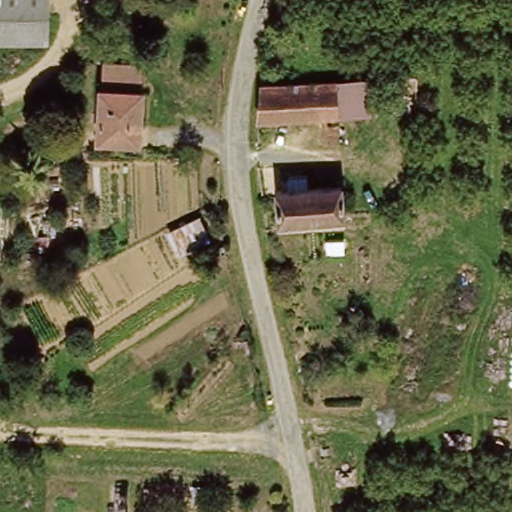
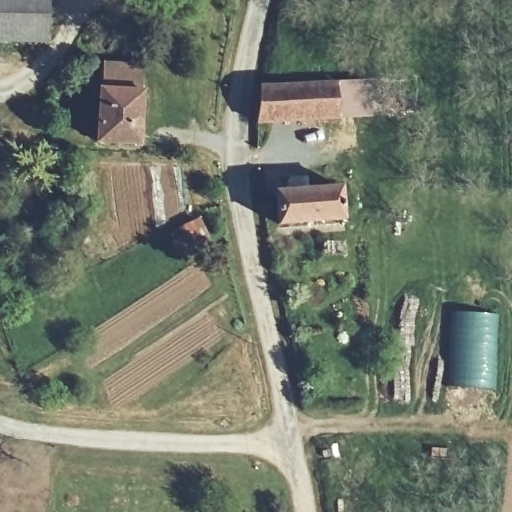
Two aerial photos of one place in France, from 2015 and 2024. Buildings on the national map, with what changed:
unchanged [(0,39),(0,0),(48,0),(48,39),(0,39)]
unchanged [(138,140),(98,138),(100,86),(105,86),(106,62),(138,65),(136,88),(141,89),(138,140)]
unchanged [(371,77),(374,120),(338,122),(334,79),(371,77)]
unchanged [(338,122),(339,138),(327,139),(325,118),(261,120),(264,83),(334,79),(338,122)]
unchanged [(278,190),(291,189),(289,176),(310,175),(311,187),(343,185),(346,219),(280,221),(278,190)]
unchanged [(219,245),(176,262),(164,234),(208,219),(219,245)]
new [(449,310),(499,313),(496,387),(446,382),(449,310)]

